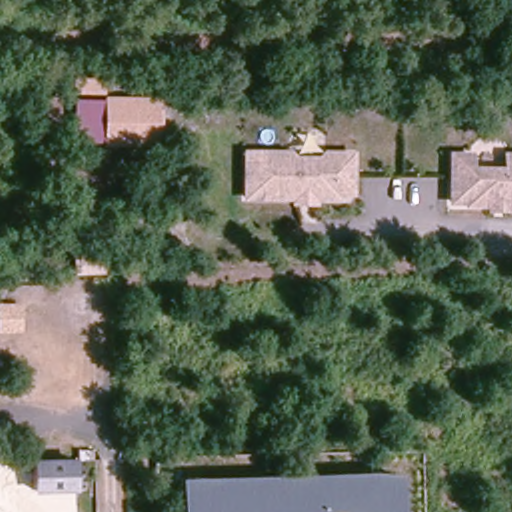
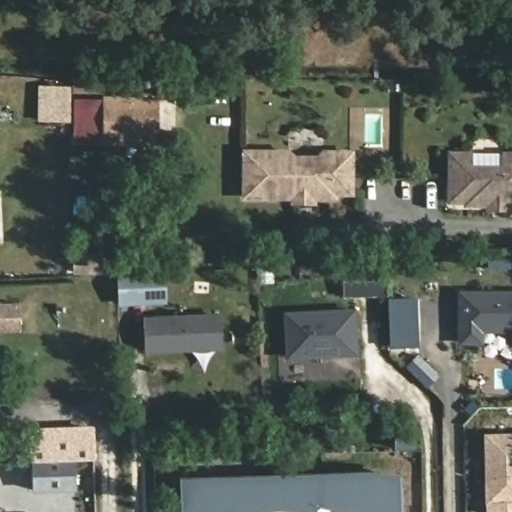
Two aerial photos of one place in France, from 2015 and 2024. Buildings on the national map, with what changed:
unchanged [(161,146),(76,146),(76,99),(76,78),(106,77),(106,96),(161,96),(161,146)]
new [(70,88),(69,122),(38,122),(38,88),(70,88)]
unchanged [(353,190),(330,198),(316,200),(313,192),(294,198),(294,201),(248,207),(246,160),(289,155),(294,162),(317,159),(328,152),(348,149),(353,190)]
unchanged [(509,206),(505,197),(496,198),(489,206),(452,206),(449,161),(465,155),(470,171),(505,167),(504,155),(512,154),(512,206),(509,206)]
unchanged [(104,274),(75,275),(74,246),(105,245),(104,274)]
new [(382,296),(340,298),(339,265),(381,262),(382,296)]
new [(507,333),(507,346),(457,347),(458,292),(512,291),(512,333),(507,333)]
unchanged [(0,333),(0,305),(21,305),(22,333),(0,333)]
new [(356,356),(285,360),(284,313),(354,311),(356,356)]
new [(219,352),(144,355),(143,315),(219,312),(219,352)]
new [(96,457),(74,459),(31,461),(30,428),(94,426),(96,457)]
new [(485,505),(483,434),(512,434),(512,504),(485,505)]
unchanged [(74,459),(75,487),(33,489),(31,461),(74,459)]
unchanged [(183,512),(181,479),(402,470),(402,512),(183,512)]

